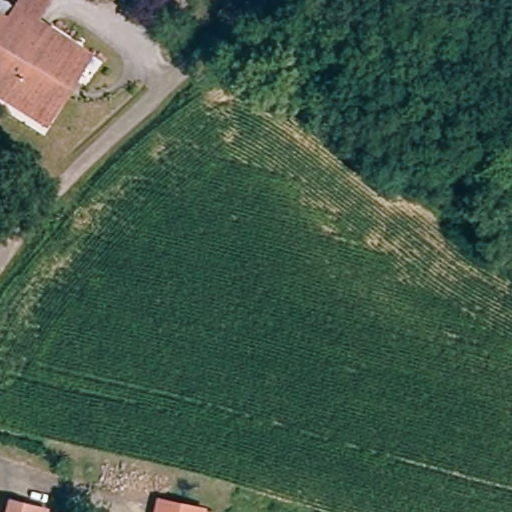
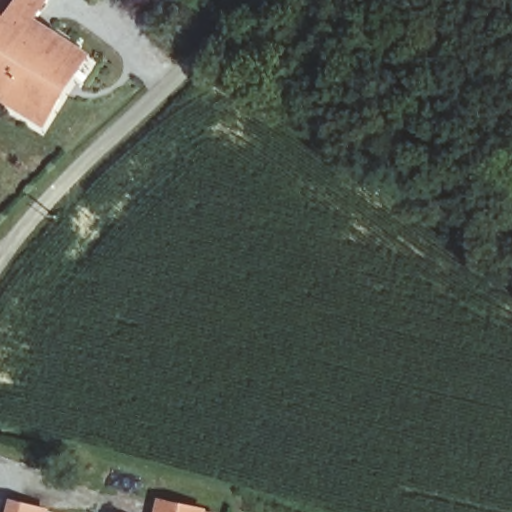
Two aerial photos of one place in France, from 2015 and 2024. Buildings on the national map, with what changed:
unchanged [(47,126),(0,97),(0,17),(6,21),(19,0),(49,0),(52,3),(40,29),(79,50),(88,55),(57,109),(47,126)]
unchanged [(205,512),(160,512),(162,502),(176,505),(205,512)]
unchanged [(18,504),(52,510),(52,512),(16,512),(18,504)]

